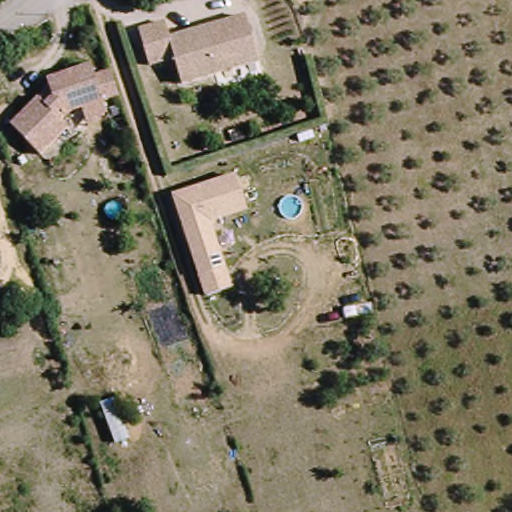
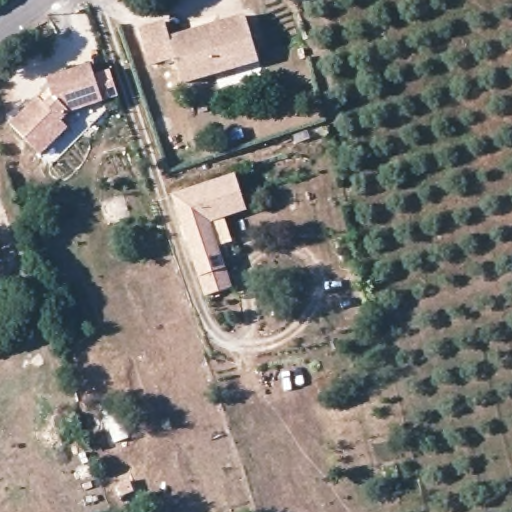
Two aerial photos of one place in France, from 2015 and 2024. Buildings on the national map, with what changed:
unchanged [(178,61),(154,69),(141,30),(168,19),(174,37),(247,13),(262,59),(184,81),(178,61)]
unchanged [(45,153),(14,124),(42,96),(53,89),(50,78),(96,62),(101,76),(113,72),(120,98),(66,112),(72,124),(45,153)]
unchanged [(199,275),(173,194),(236,174),(248,211),(212,222),(227,267),(233,288),(206,296),(199,275)]

